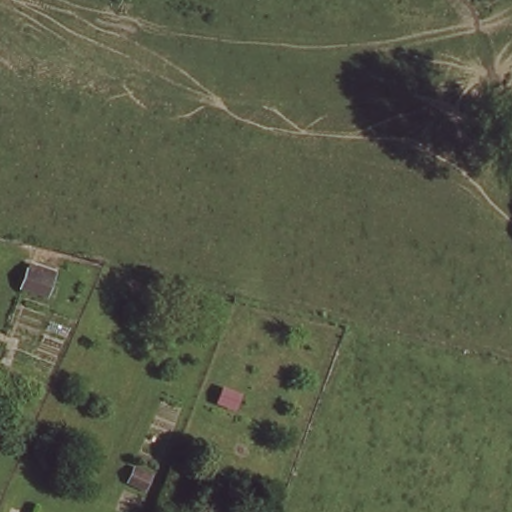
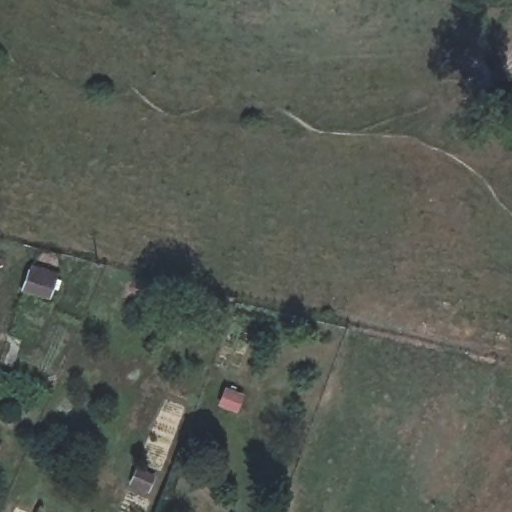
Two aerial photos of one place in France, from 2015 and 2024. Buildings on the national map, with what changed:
unchanged [(23,293),(28,277),(52,283),(48,300),(23,293)]
unchanged [(134,487),(138,473),(155,477),(151,492),(134,487)]

